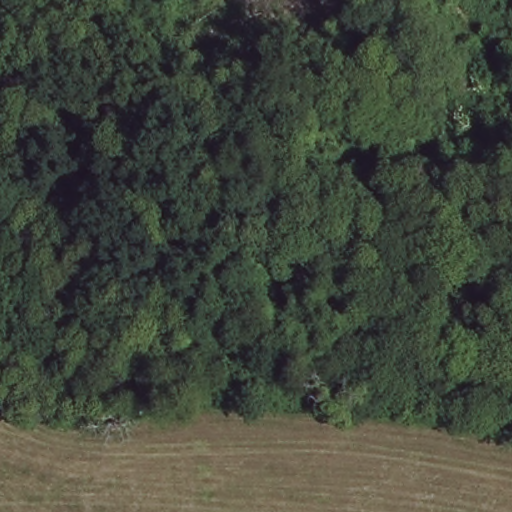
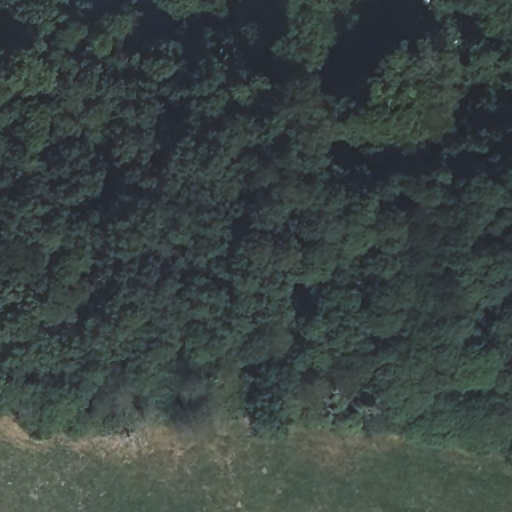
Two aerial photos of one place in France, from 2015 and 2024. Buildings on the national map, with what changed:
[]

